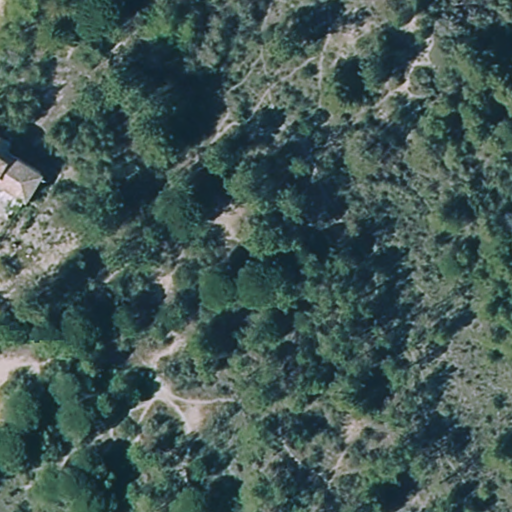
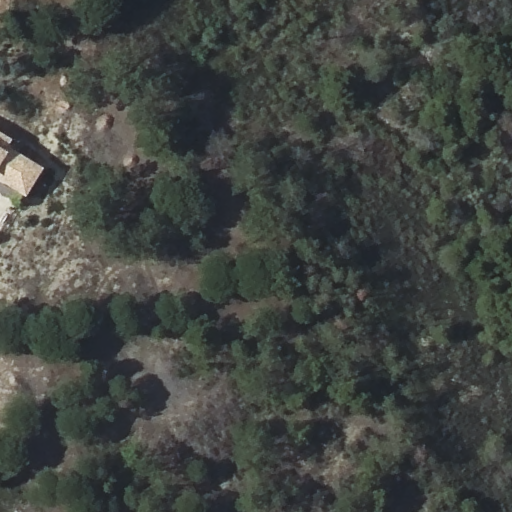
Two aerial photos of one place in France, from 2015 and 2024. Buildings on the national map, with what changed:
unchanged [(3,148),(45,169),(30,196),(0,179),(0,132),(9,137),(3,148)]

